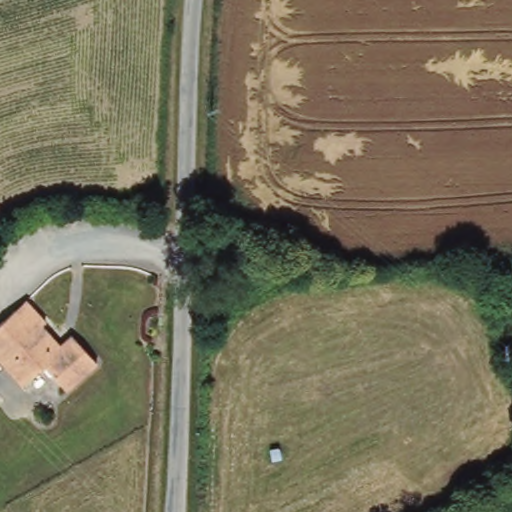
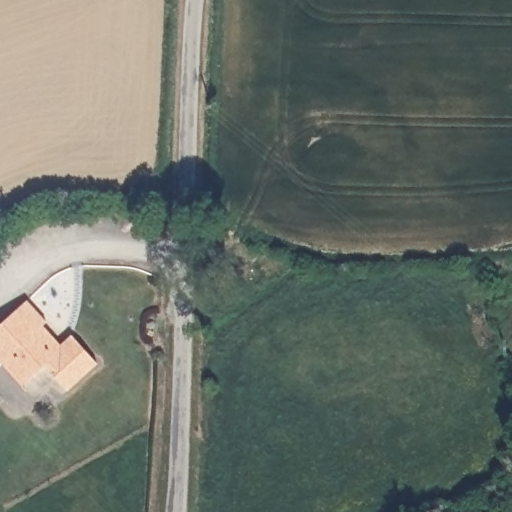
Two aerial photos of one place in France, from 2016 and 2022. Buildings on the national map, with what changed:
unchanged [(40,327),(59,346),(70,335),(96,362),(68,391),(44,367),(22,388),(0,366),(0,325),(18,307),(23,302),(44,323),(40,327)]

